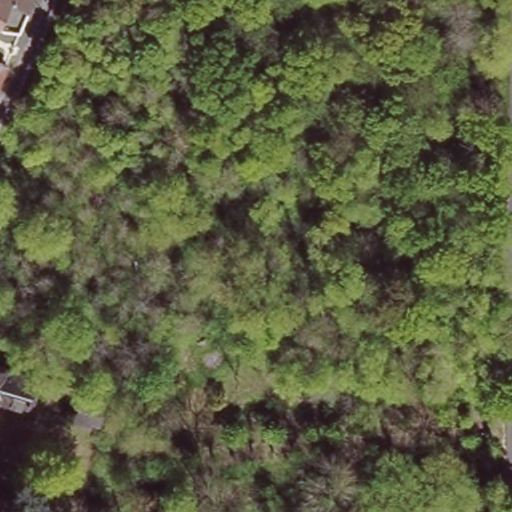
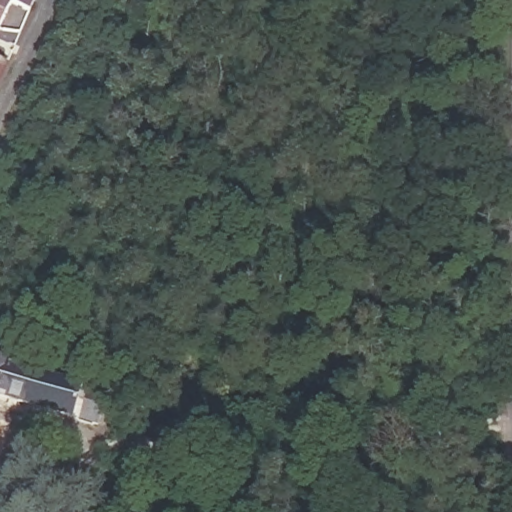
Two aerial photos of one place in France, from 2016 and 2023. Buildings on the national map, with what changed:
unchanged [(6,3),(0,15),(0,0),(20,0),(16,8),(6,3)]
unchanged [(0,89),(0,61),(11,66),(0,89)]
unchanged [(108,346),(104,381),(71,377),(75,343),(108,346)]
unchanged [(34,364),(31,393),(1,390),(0,402),(0,401),(0,362),(34,364)]
unchanged [(111,388),(99,425),(87,423),(86,433),(68,430),(84,384),(111,388)]

